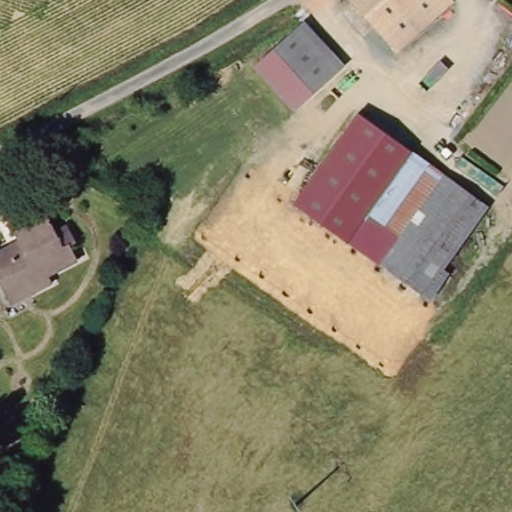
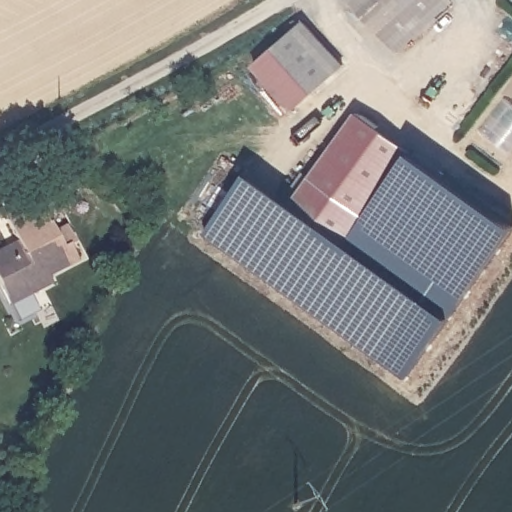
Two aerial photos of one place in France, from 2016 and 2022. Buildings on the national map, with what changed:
unchanged [(306,26),(330,9),(337,16),(354,0),(451,0),(454,4),(398,51),(383,36),(310,91),(269,53),(299,22),(306,26)]
unchanged [(361,112),(485,202),(441,266),(448,274),(431,299),(293,209),(361,112)]
new [(384,360),(206,235),(249,174),(293,209),(431,299),(384,360)]
unchanged [(0,289),(0,254),(14,247),(0,222),(0,218),(32,200),(51,234),(64,227),(74,244),(67,247),(74,262),(48,276),(52,285),(30,297),(11,308),(2,294),(0,289)]

